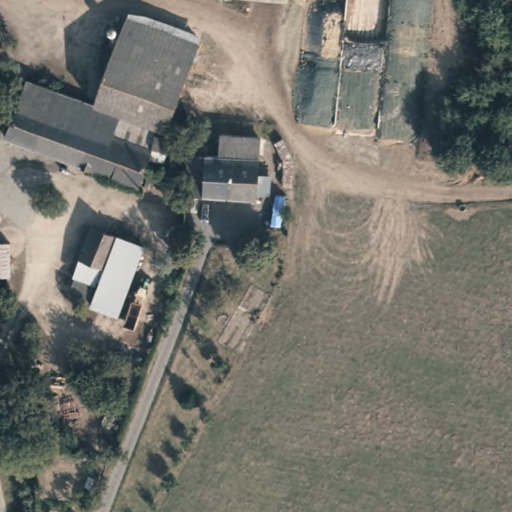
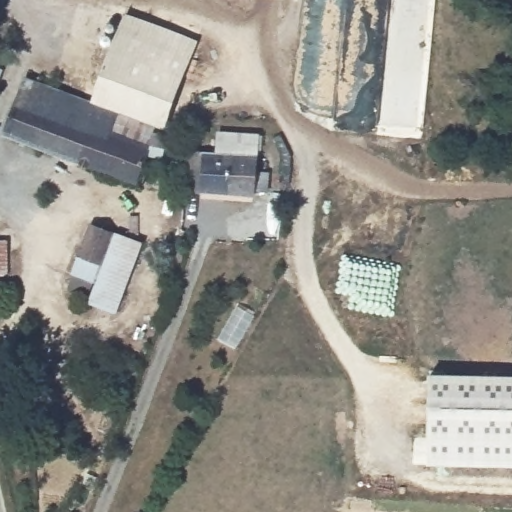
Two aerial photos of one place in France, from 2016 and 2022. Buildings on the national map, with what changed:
unchanged [(205,146),(215,147),(216,127),(259,129),(260,148),(258,149),(256,192),(187,187),(191,149),(149,141),(139,179),(5,130),(29,69),(95,97),(129,11),(197,38),(165,125),(191,132),(206,134),(205,146)]
unchanged [(4,69),(0,81),(0,68),(4,69)]
unchanged [(104,278),(80,268),(97,219),(122,228),(104,278)]
unchanged [(149,237),(123,309),(96,300),(104,278),(122,228),(149,237)]
unchanged [(10,235),(11,269),(0,269),(0,236),(10,235)]
unchanged [(95,292),(75,285),(80,272),(100,279),(95,292)]
unchanged [(107,366),(101,381),(75,373),(80,357),(107,366)]
new [(428,373),(512,375),(512,468),(427,466),(428,373)]

